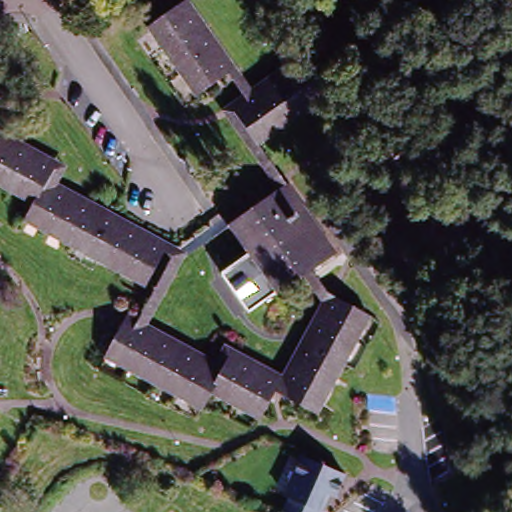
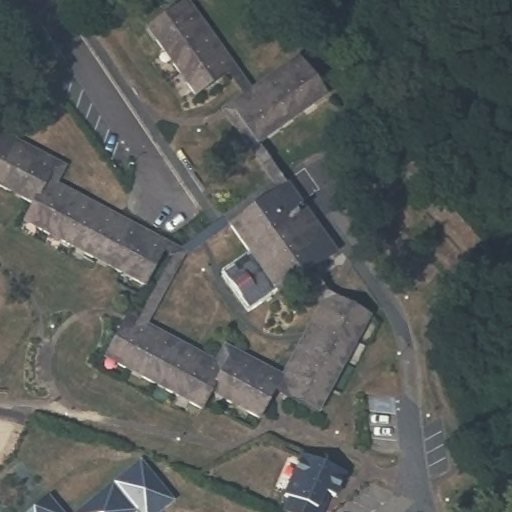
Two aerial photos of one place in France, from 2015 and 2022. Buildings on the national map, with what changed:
unchanged [(58,190),(176,255),(271,189),(220,117),(241,102),(227,81),(178,10),(186,5),(249,96),(298,62),(304,70),(259,101),(234,119),(259,152),(287,192),(229,232),(183,265),(147,331),(213,368),(223,352),(281,382),(320,309),(303,284),(311,278),(324,298),(335,304),(281,403),(274,399),(278,390),(238,370),(227,364),(218,380),(140,337),(123,328),(128,321),(138,326),(171,263),(164,259),(44,193),(52,178),(0,149),(0,137),(66,174),(58,190)]
unchanged [(227,81),(194,104),(146,33),(178,10),(227,81)]
unchanged [(328,103),(259,152),(234,119),(259,101),(304,70),(328,103)]
unchanged [(44,193),(164,259),(144,294),(23,227),(31,211),(0,194),(0,149),(52,178),(44,193)]
unchanged [(335,262),(311,278),(303,284),(277,302),(275,299),(248,318),(221,279),(248,260),(229,232),(287,192),(335,262)]
unchanged [(335,304),(369,322),(316,421),(281,403),(335,304)]
unchanged [(140,337),(218,380),(227,364),(238,370),(278,390),(274,399),(259,426),(210,400),(201,417),(103,362),(123,328),(140,337)]
unchanged [(324,512),(292,512),(285,509),(291,494),(289,493),(306,453),(349,471),(339,494),(333,491),(326,507),(324,512)]
new [(141,456),(174,499),(159,512),(72,512),(141,456)]
new [(51,492),(65,512),(26,512),(51,492)]

